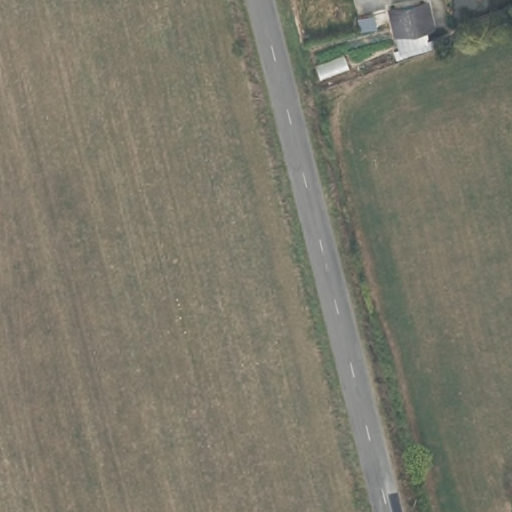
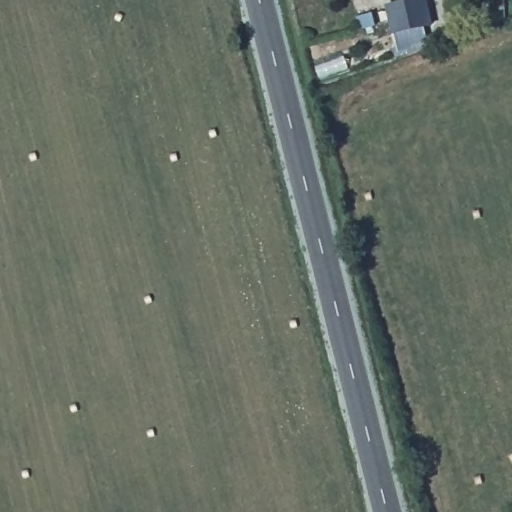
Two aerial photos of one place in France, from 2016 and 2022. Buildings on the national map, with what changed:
unchanged [(429,7),(437,31),(399,39),(396,14),(429,7)]

